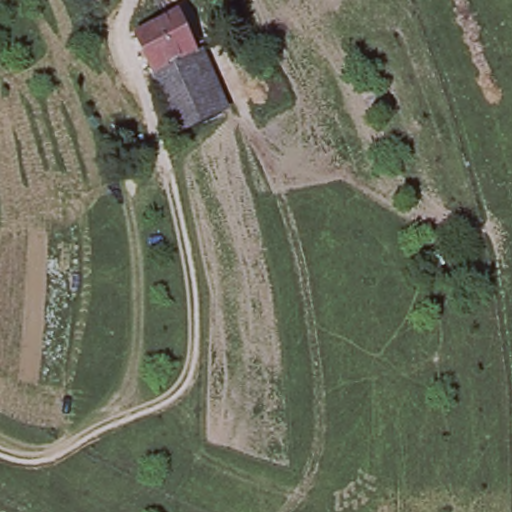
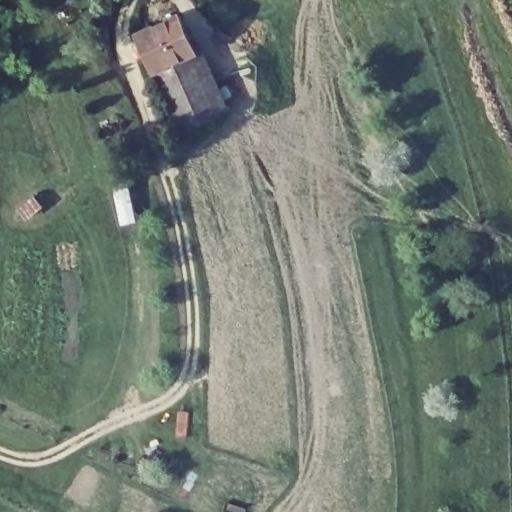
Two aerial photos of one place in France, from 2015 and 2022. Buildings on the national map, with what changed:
unchanged [(178,15),(195,52),(156,70),(154,71),(137,34),(178,15)]
unchanged [(195,52),(221,111),(181,129),(156,70),(195,52)]
unchanged [(113,121),(115,121),(117,121),(120,122),(121,125),(121,128),(120,130),(119,132),(117,133),(115,134),(113,134),(110,134),(108,133),(107,131),(106,128),(107,125),(108,123),(111,121),(113,121)]

